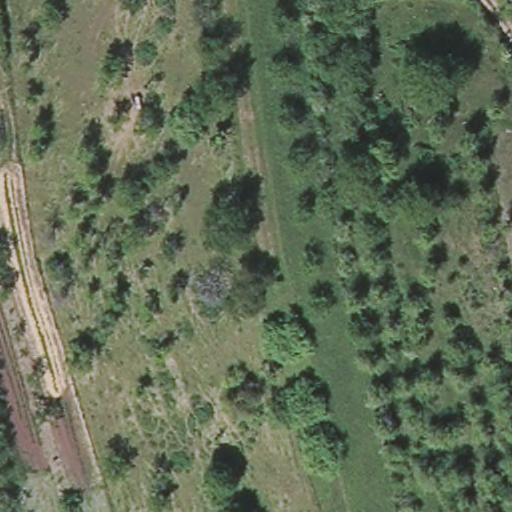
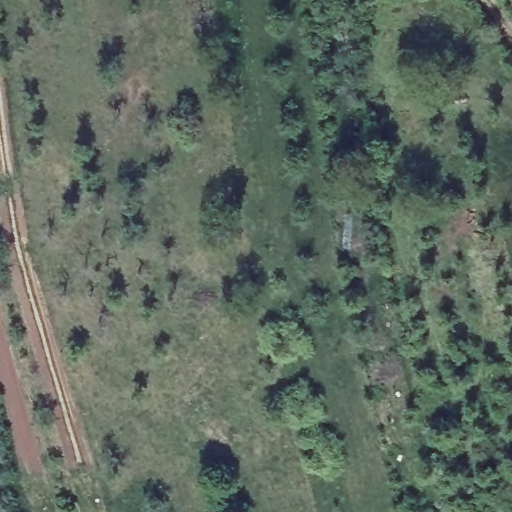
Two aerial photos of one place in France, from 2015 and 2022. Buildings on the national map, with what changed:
[]

